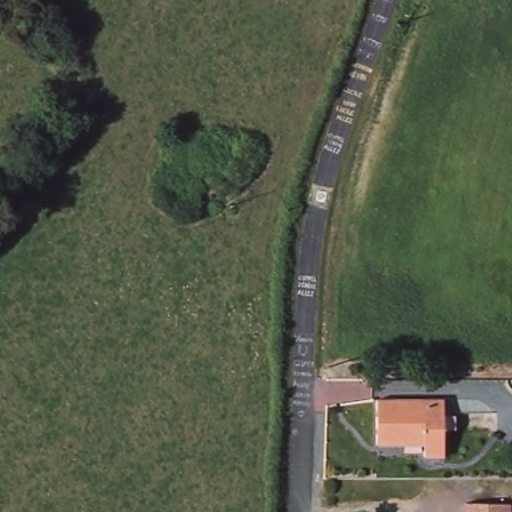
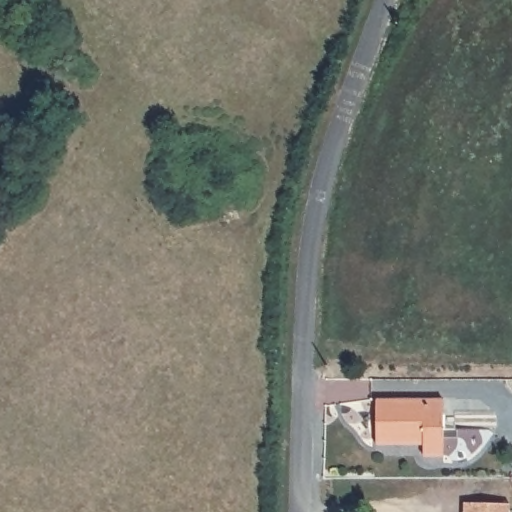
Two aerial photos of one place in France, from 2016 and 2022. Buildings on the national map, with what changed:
unchanged [(443,401),(441,460),(420,460),(418,446),(376,445),(377,400),(443,401)]
unchanged [(509,512),(461,512),(461,507),(509,506),(509,512)]

